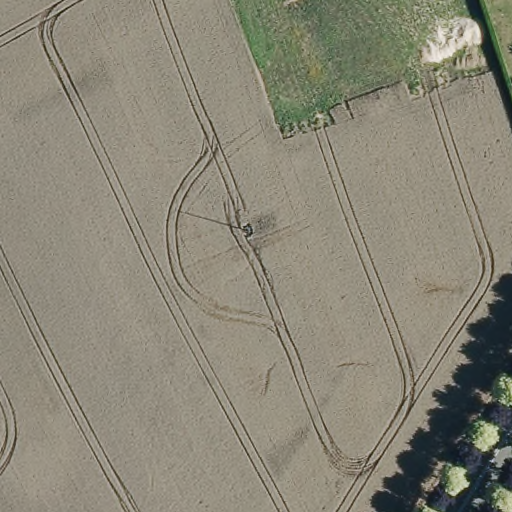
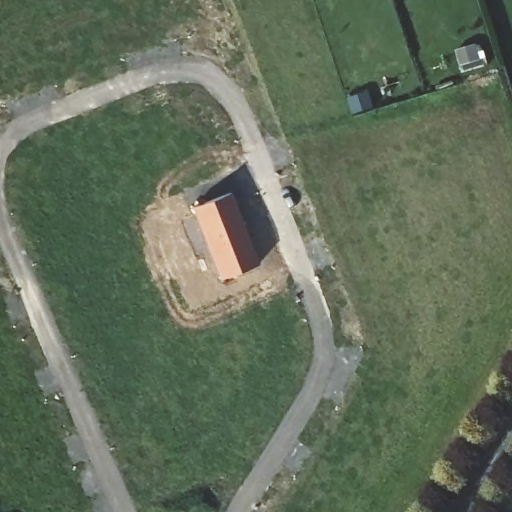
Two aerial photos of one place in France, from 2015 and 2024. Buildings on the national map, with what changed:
new [(232,192),(259,263),(220,278),(193,207),(232,192)]

